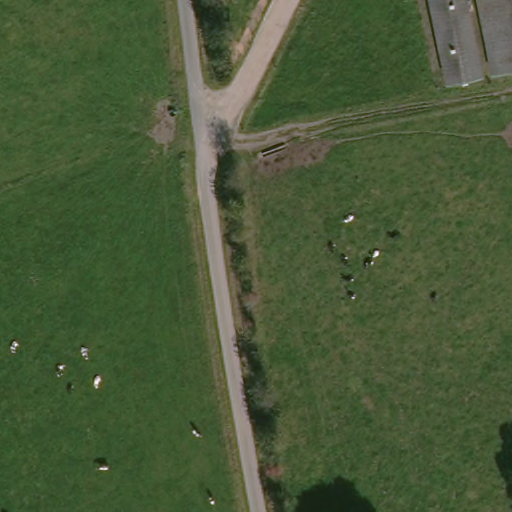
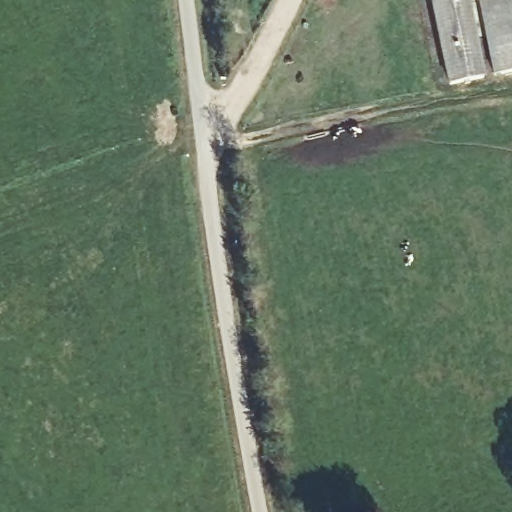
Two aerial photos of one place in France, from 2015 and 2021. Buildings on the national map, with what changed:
unchanged [(454,84),(436,0),(470,0),(486,76),(454,84)]
unchanged [(487,0),(512,0),(512,72),(503,74),(487,0)]

